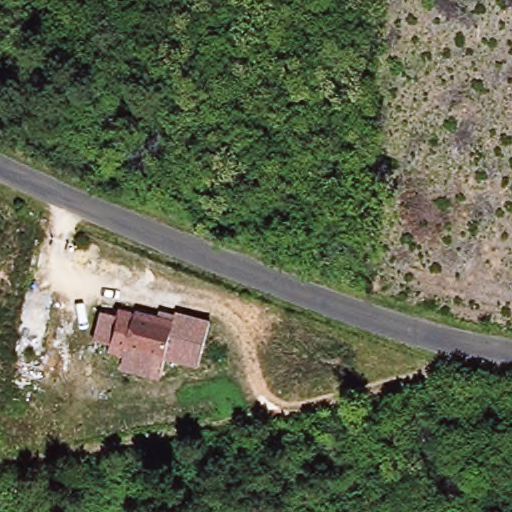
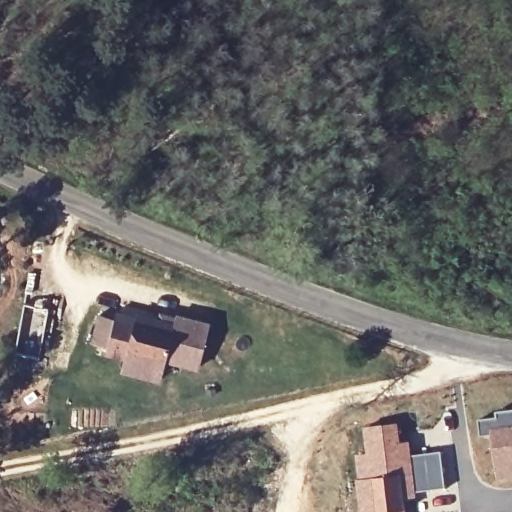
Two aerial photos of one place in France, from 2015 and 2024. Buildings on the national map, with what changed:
unchanged [(124,355),(109,352),(110,345),(91,341),(97,311),(116,315),(117,308),(157,316),(159,307),(210,320),(199,369),(165,361),(160,381),(121,372),(124,355)]
new [(496,416),(495,411),(512,408),(512,477),(497,480),(492,435),(480,436),(478,418),(496,416)]
new [(366,452),(363,426),(401,421),(403,441),(411,440),(413,454),(417,492),(419,497),(407,498),(408,512),(361,512),(355,454),(366,452)]
new [(442,450),(447,488),(417,492),(413,454),(442,450)]

